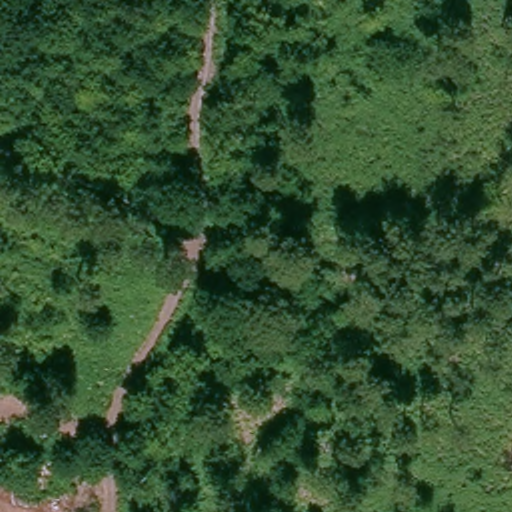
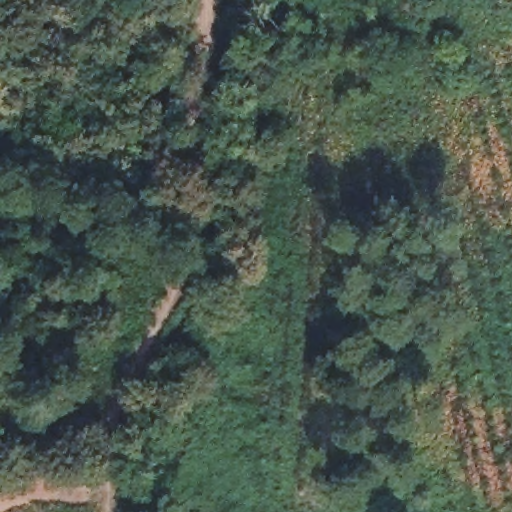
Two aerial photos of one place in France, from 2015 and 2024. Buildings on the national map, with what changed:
[]

